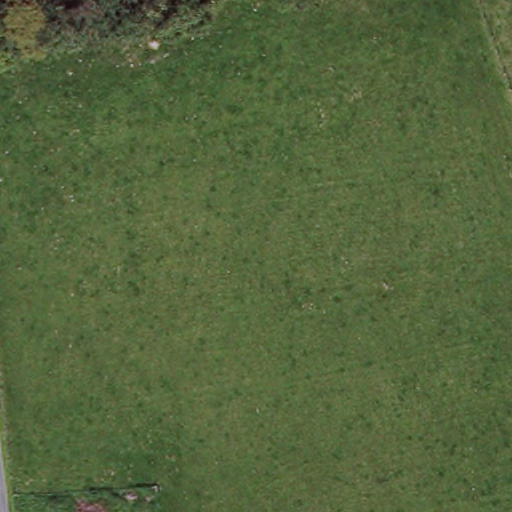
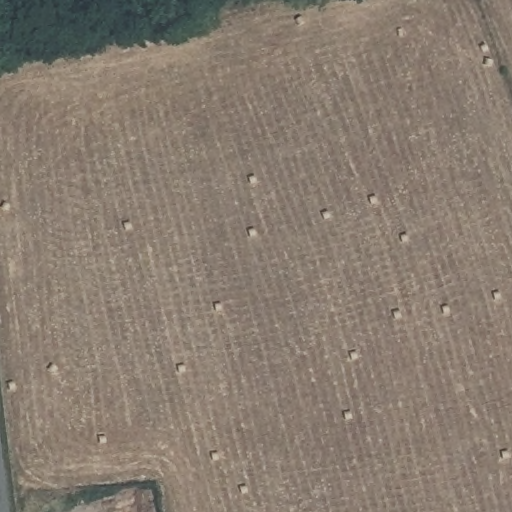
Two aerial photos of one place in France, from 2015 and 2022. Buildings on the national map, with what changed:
[]

